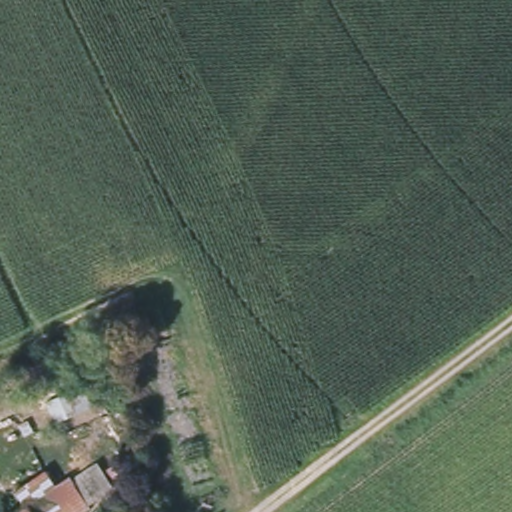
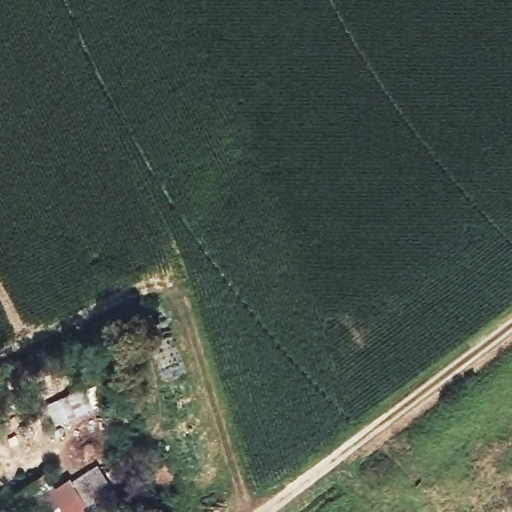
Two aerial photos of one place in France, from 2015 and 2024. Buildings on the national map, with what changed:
unchanged [(49,413),(44,405),(94,383),(104,403),(24,440),(19,428),(49,413)]
unchanged [(60,485),(76,476),(79,478),(104,465),(120,489),(93,506),(95,510),(92,512),(17,512),(28,505),(21,491),(53,472),(60,485)]

